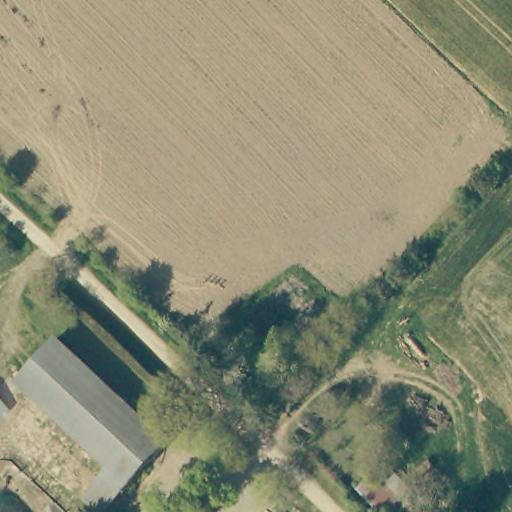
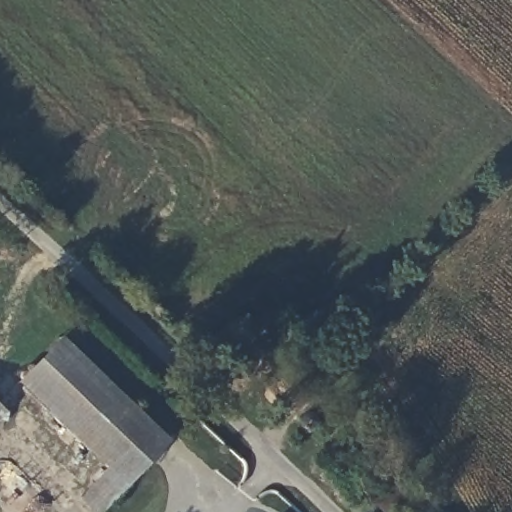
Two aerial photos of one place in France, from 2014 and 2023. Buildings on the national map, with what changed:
unchanged [(91,450),(19,383),(59,339),(131,405),(91,450)]
unchanged [(169,439),(105,512),(100,512),(82,496),(110,466),(91,450),(131,405),(169,439)]
unchanged [(0,416),(0,408),(4,411),(0,416)]
unchanged [(386,463),(418,491),(408,501),(393,487),(375,507),(361,495),(386,463)]
unchanged [(420,512),(381,512),(375,507),(393,487),(408,501),(420,512)]

